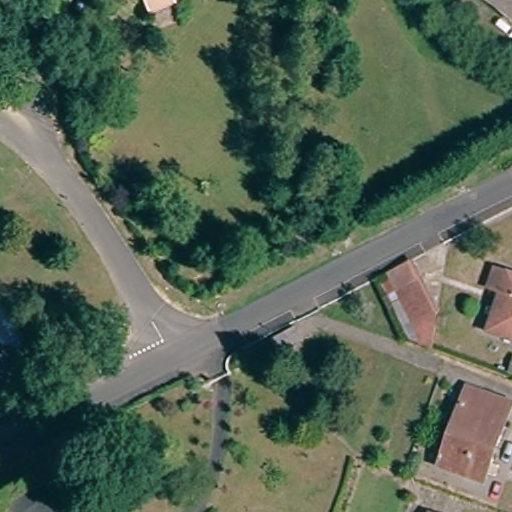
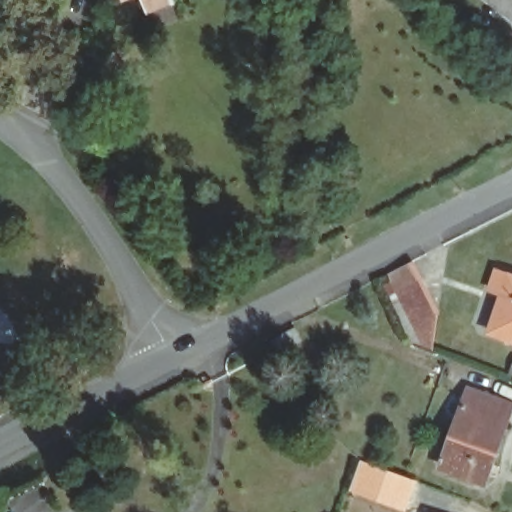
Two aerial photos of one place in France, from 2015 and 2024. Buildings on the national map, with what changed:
unchanged [(121,0),(123,0),(121,1),(121,0)]
unchanged [(147,10),(144,0),(175,0),(147,10)]
unchanged [(512,16),(491,0),(512,0),(512,16)]
unchanged [(427,318),(408,327),(393,293),(386,296),(381,282),(386,280),(384,274),(410,265),(418,284),(432,317),(427,318)]
unchanged [(503,294),(492,291),(500,269),(512,275),(512,336),(492,328),(503,294)]
unchanged [(302,327),(309,339),(285,352),(278,340),(302,327)]
unchanged [(447,462),(475,385),(512,399),(512,422),(497,463),(491,479),(476,472),(447,462)]
new [(405,512),(359,496),(370,464),(417,481),(406,512),(405,512)]

